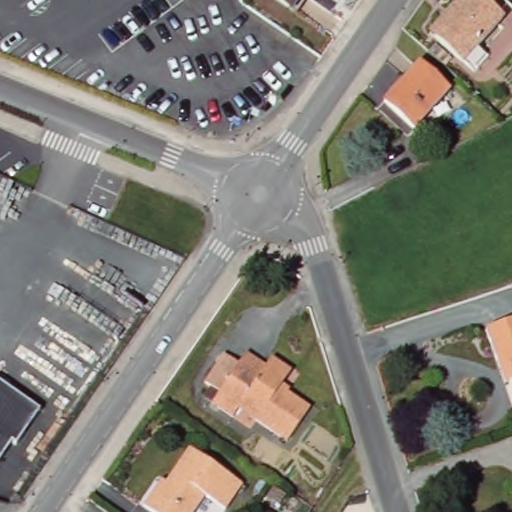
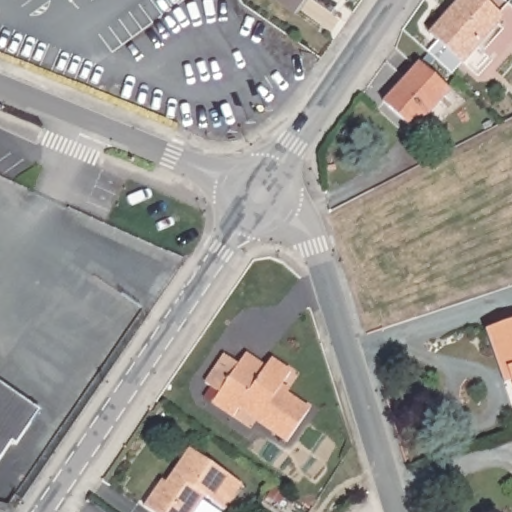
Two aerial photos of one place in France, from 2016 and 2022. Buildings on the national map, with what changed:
unchanged [(295,10),(279,0),(301,0),(295,10)]
unchanged [(498,19),(459,61),(426,31),(455,0),(478,0),(498,19)]
unchanged [(449,90),(415,127),(385,100),(419,63),(449,90)]
unchanged [(504,366),(490,326),(512,318),(512,378),(508,379),(504,366)]
unchanged [(236,361),(244,350),(263,363),(270,355),(290,367),(279,384),(308,405),(285,437),(252,416),(254,412),(237,402),(230,413),(210,398),(217,388),(202,378),(222,351),(236,361)]
unchanged [(41,411),(16,447),(10,443),(0,458),(0,382),(41,411)]
unchanged [(228,508),(208,496),(197,512),(159,512),(148,505),(160,486),(165,479),(169,481),(193,447),(246,483),(228,508)]

